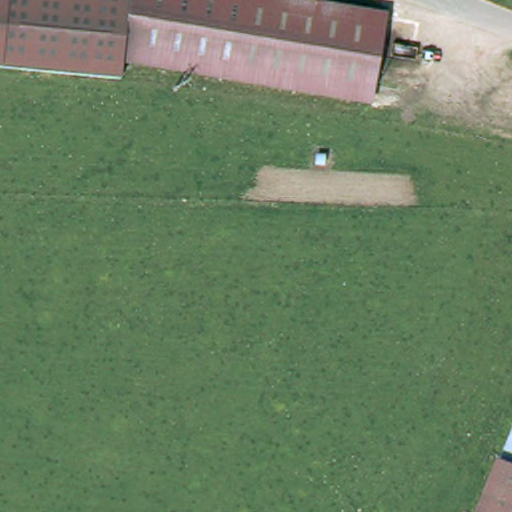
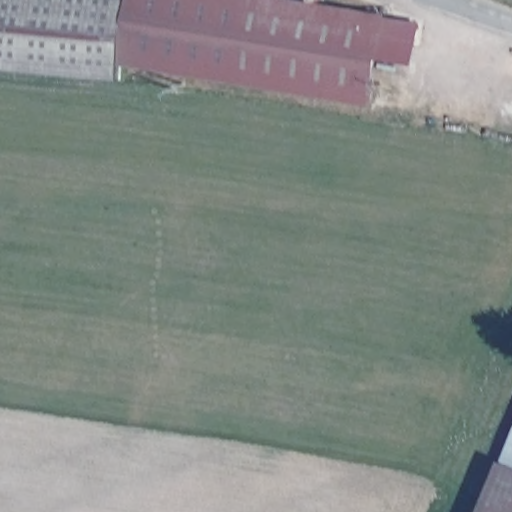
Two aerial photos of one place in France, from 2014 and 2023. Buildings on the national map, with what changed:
unchanged [(125,59),(121,83),(0,71),(0,0),(126,0),(116,57),(125,59)]
unchanged [(365,100),(125,59),(116,57),(126,0),(314,0),(381,11),(365,100)]
unchanged [(475,512),(512,423),(512,512),(475,512)]

